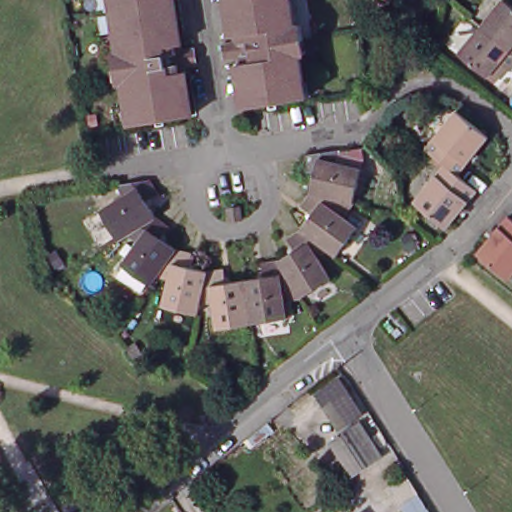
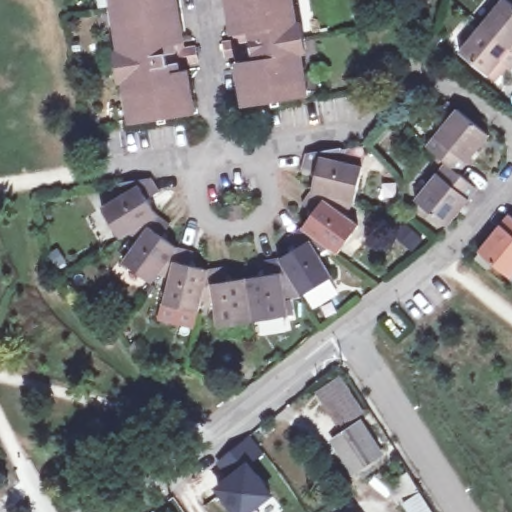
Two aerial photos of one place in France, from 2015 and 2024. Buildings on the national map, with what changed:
unchanged [(126,105),(113,25),(110,0),(172,0),(178,40),(180,50),(192,48),(193,53),(195,61),(182,63),(183,70),(190,112),(137,121),(128,123),(126,105)]
unchanged [(242,61),(242,54),(229,56),(227,49),(227,43),(240,41),(238,32),(233,0),(296,0),(308,77),(311,94),(303,95),(250,103),(242,61)]
unchanged [(481,24),(501,0),(508,0),(512,3),(512,69),(508,66),(497,81),(490,76),(459,51),(481,24)]
unchanged [(447,162),(443,160),(427,145),(457,109),(490,136),(459,172),(478,189),(449,226),(417,199),(447,162)]
unchanged [(101,213),(126,199),(119,186),(148,182),(158,196),(147,202),(158,220),(171,230),(161,240),(178,252),(193,257),(190,270),(210,276),(211,273),(225,272),(227,286),(248,283),(267,280),(265,266),(280,263),(298,253),(291,241),(303,232),(315,216),(303,207),(313,196),(314,195),(319,177),(303,173),(308,158),(337,154),(340,153),(337,166),(363,172),(355,206),(350,205),(345,204),(337,214),(358,230),(337,257),(330,252),(328,251),(317,258),(333,282),(302,299),(297,290),(284,292),(288,320),(255,325),(220,330),(215,302),(202,304),(198,316),(165,308),(172,281),(159,277),(152,286),(125,266),(141,243),(130,236),(120,242),(101,213)]
unchanged [(247,220),(231,222),(229,206),(245,204),(247,220)]
unchanged [(512,216),(512,274),(482,250),(512,216)]
unchanged [(345,410),(327,382),(337,375),(357,403),(345,410)]
unchanged [(355,472),(335,441),(362,423),(382,453),(355,472)]
new [(264,453),(248,465),(270,495),(247,512),(236,512),(218,487),(232,477),(220,460),(251,435),(264,453)]
unchanged [(387,491),(407,477),(430,512),(405,512),(403,509),(400,511),(387,491)]
unchanged [(70,510),(65,501),(80,491),(86,500),(70,510)]

